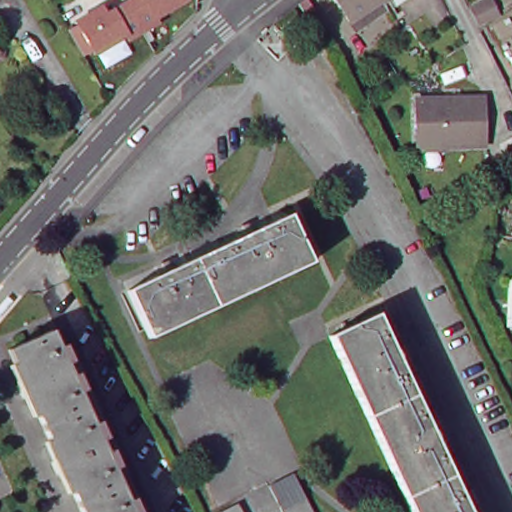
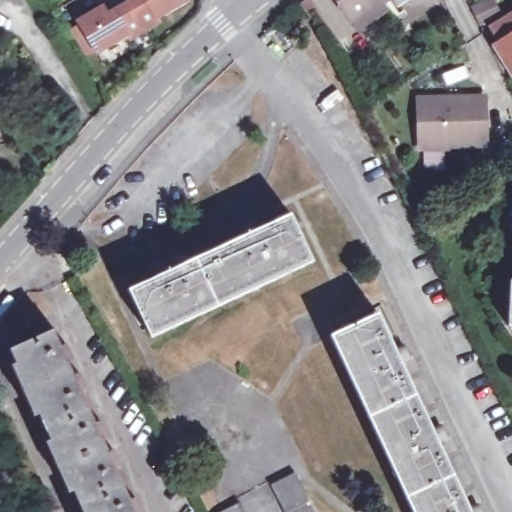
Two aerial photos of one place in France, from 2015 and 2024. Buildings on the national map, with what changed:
unchanged [(161,17),(164,24),(130,42),(125,37),(94,55),(77,23),(100,7),(107,15),(131,0),(185,0),(161,17)]
unchanged [(355,21),(341,0),(387,0),(355,21)]
unchanged [(480,31),(472,18),(470,14),(492,2),(494,7),(501,20),(480,31)]
unchanged [(512,17),(512,84),(492,53),(500,48),(489,32),(490,31),(512,17)]
unchanged [(489,97),(490,147),(423,149),(422,98),(489,97)]
unchanged [(242,237),(240,231),(255,224),(257,230),(292,215),(313,260),(153,333),(132,287),(162,273),(160,267),(175,260),(177,267),(242,237)]
unchanged [(473,512),(416,512),(332,336),(378,313),(473,512)]
unchanged [(115,448),(122,465),(117,467),(131,498),(136,496),(144,512),(85,512),(11,348),(55,328),(62,345),(67,343),(73,359),(70,362),(75,374),(79,372),(87,388),(82,390),(97,421),(101,418),(109,436),(104,438),(110,450),(115,448)]
unchanged [(277,482),(302,470),(315,493),(313,495),(322,512),(291,512),(288,506),(277,482)]
unchanged [(248,512),(226,512),(243,502),(248,512)]

